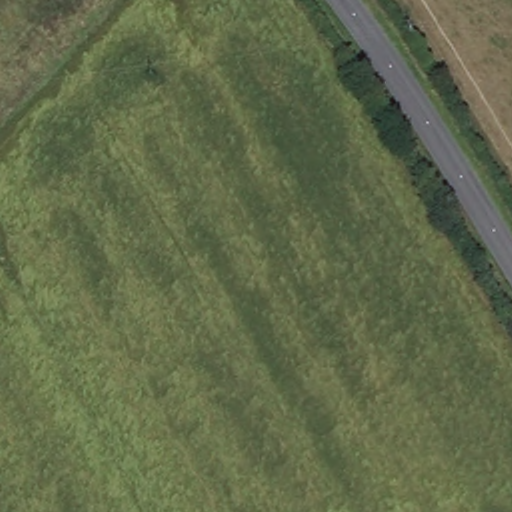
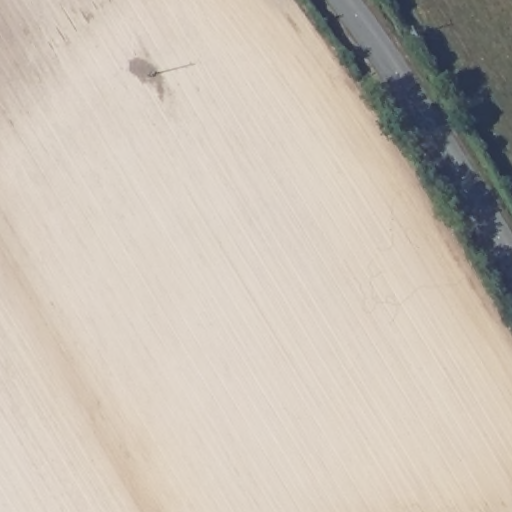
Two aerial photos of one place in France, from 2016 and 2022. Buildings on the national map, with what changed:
unchanged [(425,33),(411,41),(404,32),(421,24),(425,33)]

